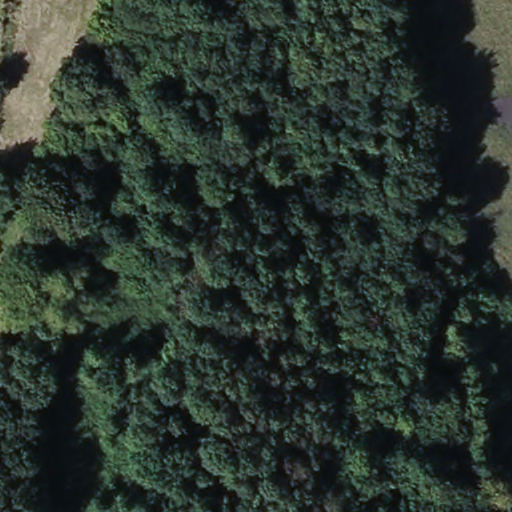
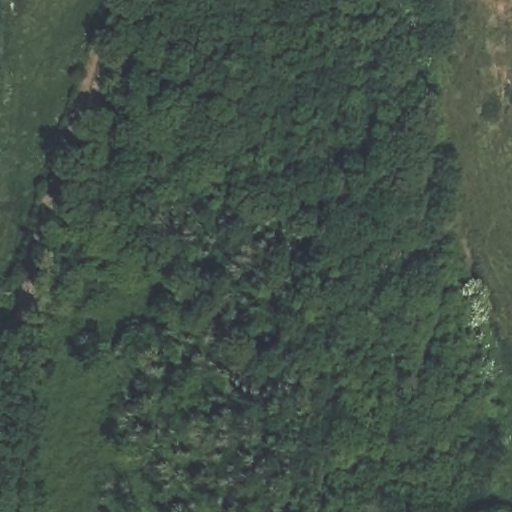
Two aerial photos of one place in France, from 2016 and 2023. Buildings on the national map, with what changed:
[]

